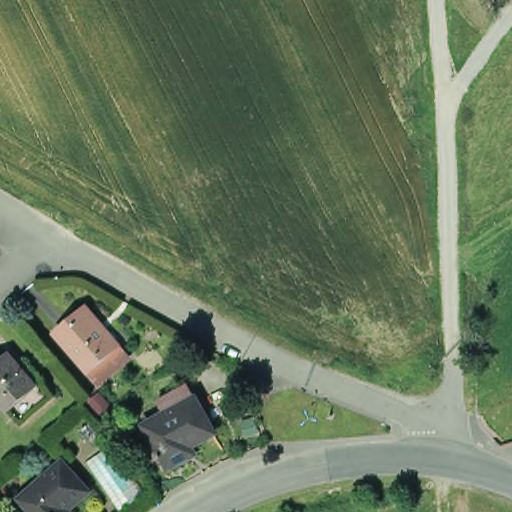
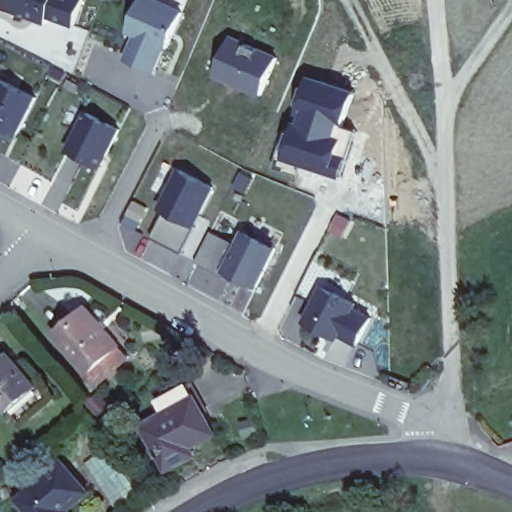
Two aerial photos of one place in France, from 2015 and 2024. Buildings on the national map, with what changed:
new [(72,26),(48,18),(46,25),(23,17),(24,14),(2,7),(4,0),(80,0),(72,26)]
new [(170,50),(166,48),(156,73),(125,60),(134,34),(127,32),(140,0),(162,0),(186,9),(170,50)]
new [(215,77),(232,35),(281,55),(264,98),(215,77)]
new [(0,127),(0,82),(2,77),(40,96),(20,136),(0,127)]
new [(357,91),(347,124),(364,129),(347,178),(307,164),(303,177),(277,168),(290,129),(297,131),(301,121),(305,124),(307,114),(303,112),(314,78),(357,91)]
new [(87,110),(125,128),(104,169),(67,150),(87,110)]
new [(218,188),(184,253),(151,236),(165,211),(161,208),(181,169),(218,188)]
new [(258,288),(229,273),(226,277),(197,262),(212,231),(236,243),(244,228),(279,246),(258,288)]
new [(359,304),(358,306),(374,314),(357,345),(341,336),(339,340),(304,321),(323,285),(359,304)]
unchanged [(57,336),(88,308),(122,349),(91,376),(57,336)]
unchanged [(39,386),(11,411),(0,399),(0,368),(13,356),(39,386)]
unchanged [(162,458),(160,458),(158,455),(160,453),(145,425),(166,413),(158,397),(187,381),(195,396),(213,431),(183,448),(187,456),(167,468),(162,458)]
demolished [(284,411),(275,415),(272,405),(281,402),(284,411)]
unchanged [(37,512),(19,490),(61,454),(86,484),(61,506),(65,512),(37,512)]

